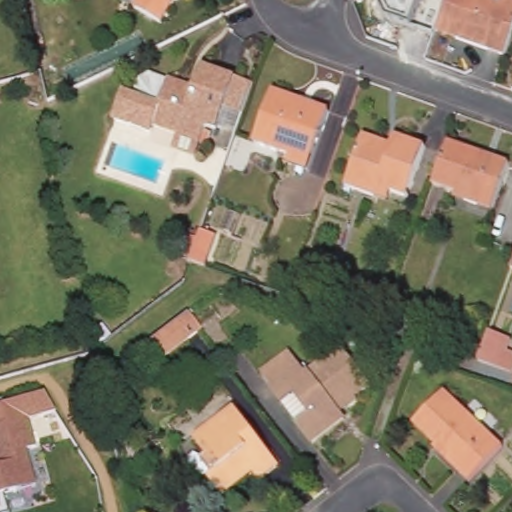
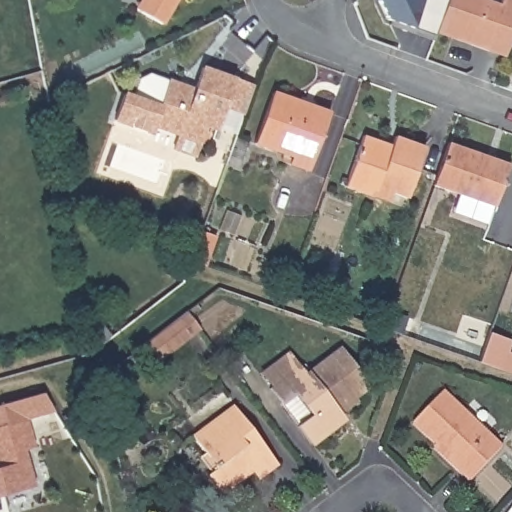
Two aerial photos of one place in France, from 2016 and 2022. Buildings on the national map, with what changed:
unchanged [(163,25),(140,12),(146,0),(178,0),(163,25)]
unchanged [(438,28),(448,0),(486,0),(500,5),(502,0),(512,0),(512,38),(505,57),(457,40),(436,33),(438,28)]
unchanged [(175,149),(180,135),(155,126),(151,133),(115,120),(125,93),(134,96),(141,79),(151,75),(170,82),(195,90),(203,68),(255,86),(254,88),(245,114),(226,107),(217,130),(207,126),(201,143),(196,157),(175,149)]
unchanged [(308,171),(290,165),(292,157),(255,144),(273,93),(330,113),(308,171)]
unchanged [(375,198),(345,188),(364,136),(392,146),(395,137),(426,148),(408,199),(392,194),(389,202),(375,198)]
unchanged [(495,207),(434,186),(449,143),(510,165),(495,207)]
unchanged [(187,312),(200,330),(154,365),(140,347),(187,312)]
unchanged [(489,334),(511,341),(501,371),(479,363),(489,334)]
unchanged [(346,414),(315,437),(304,421),(288,400),(275,384),(305,361),(313,372),(345,347),(371,381),(358,391),(362,397),(343,411),(346,414)]
unchanged [(56,414),(31,421),(38,445),(26,448),(35,491),(3,499),(6,512),(0,512),(0,402),(42,392),(56,414)]
unchanged [(504,448),(470,483),(438,453),(440,450),(413,424),(445,392),(504,448)]
unchanged [(223,499),(210,481),(220,473),(195,440),(236,409),(279,467),(259,481),(255,475),(248,480),(223,499)]

